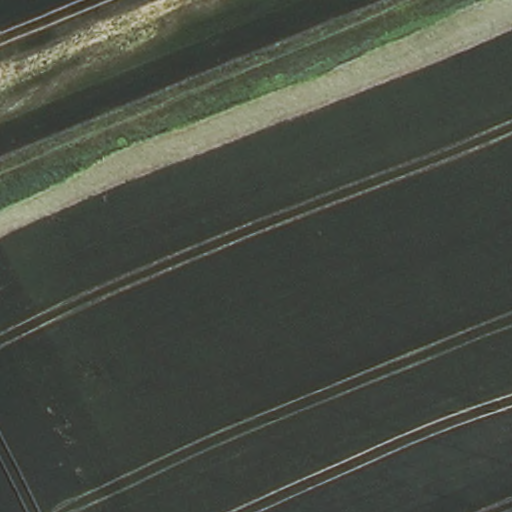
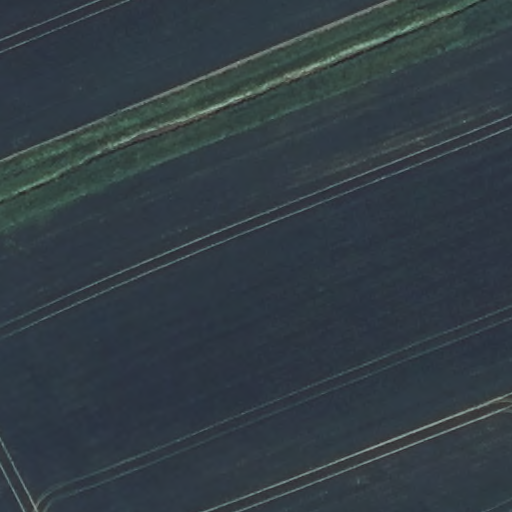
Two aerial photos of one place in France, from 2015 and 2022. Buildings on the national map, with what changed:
[]

